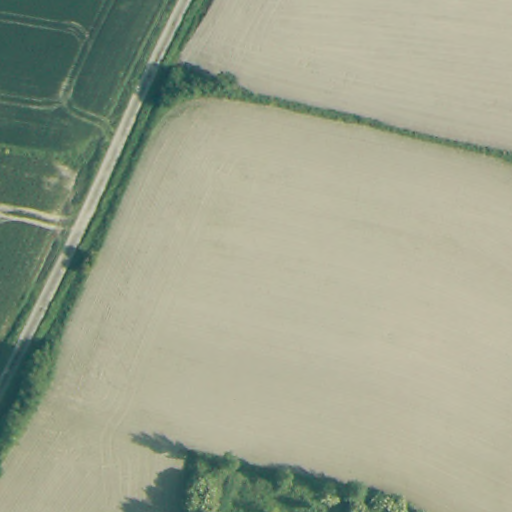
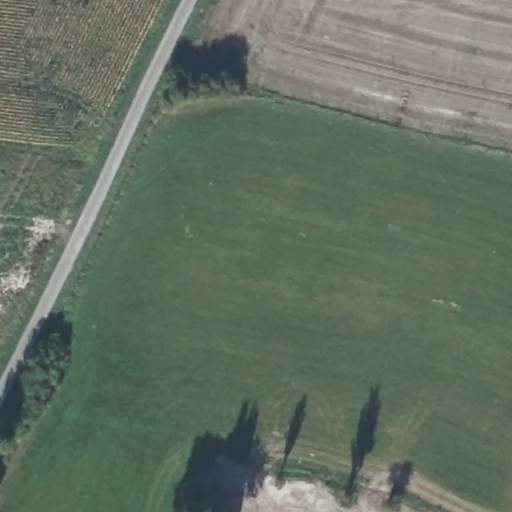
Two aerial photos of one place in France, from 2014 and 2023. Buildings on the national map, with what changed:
unchanged [(338,512),(259,495),(196,481),(197,471),(262,485),(340,502),(338,512)]

